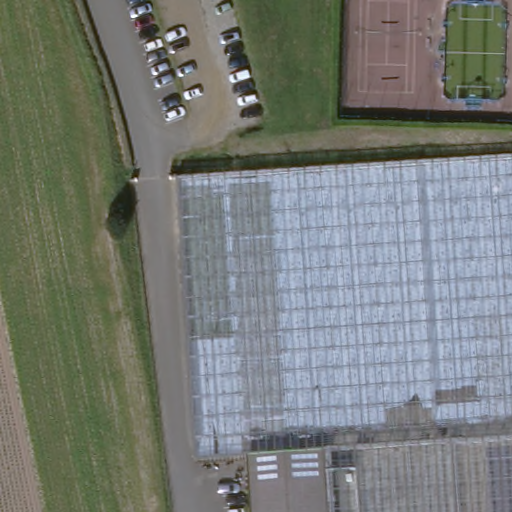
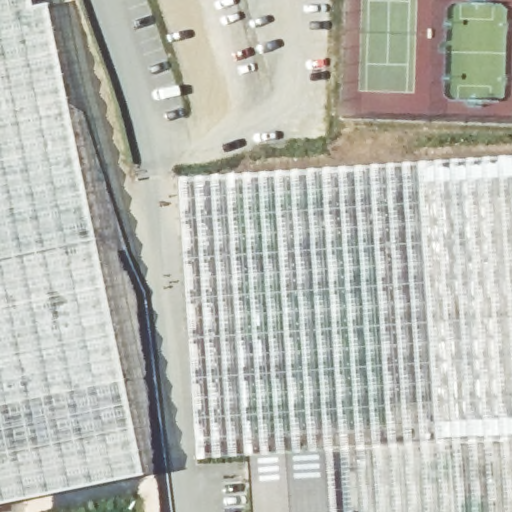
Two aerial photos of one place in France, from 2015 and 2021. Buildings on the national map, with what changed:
new [(31,0),(33,7),(48,5),(142,478),(0,507),(0,0),(31,0)]
unchanged [(434,158),(434,163),(417,162),(417,159),(418,138),(436,140),(434,158)]
unchanged [(325,456),(246,461),(194,464),(177,183),(512,161),(512,512),(329,512),(325,456)]
unchanged [(246,461),(325,456),(329,512),(249,512),(246,461)]

